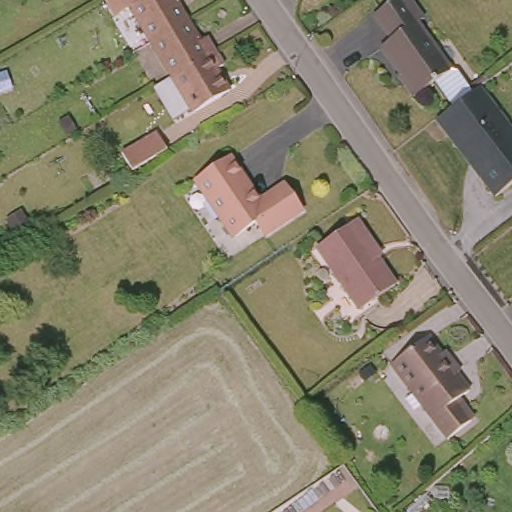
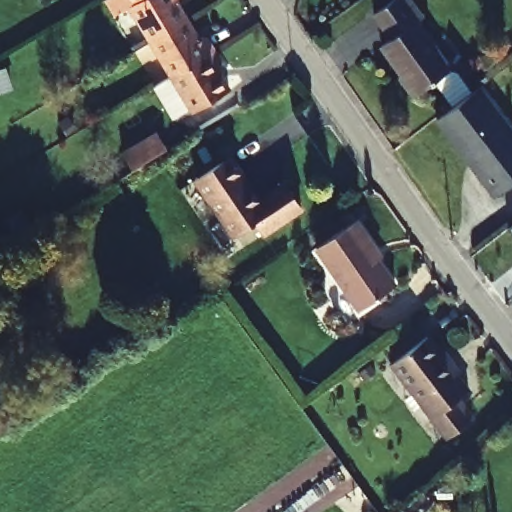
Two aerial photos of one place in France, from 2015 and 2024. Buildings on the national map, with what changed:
unchanged [(135,0),(185,0),(192,14),(156,35),(135,0)]
unchanged [(417,94),(402,73),(404,72),(384,43),(394,36),(377,12),(394,0),(414,0),(425,14),(418,20),(453,69),(460,68),(475,89),(464,98),(455,105),(437,80),(417,94)]
unchanged [(156,35),(192,14),(205,35),(210,31),(218,44),(176,69),(156,35)]
unchanged [(218,44),(227,59),(220,63),(233,85),(198,107),(195,102),(178,112),(159,79),(176,69),(218,44)]
unchanged [(512,183),(498,193),(440,115),(455,105),(464,98),(475,89),(483,84),(512,123),(512,183)]
unchanged [(127,145),(159,125),(170,143),(137,162),(127,145)]
unchanged [(230,153),(260,195),(283,180),(301,206),(263,231),(255,219),(235,233),(195,177),(230,153)]
unchanged [(356,214),(373,242),(370,244),(392,280),(356,302),(317,238),(356,214)]
unchanged [(425,331),(444,357),(448,354),(458,368),(455,370),(416,401),(386,363),(425,331)]
unchanged [(468,387),(456,396),(470,415),(442,436),(416,401),(455,370),(468,387)]

